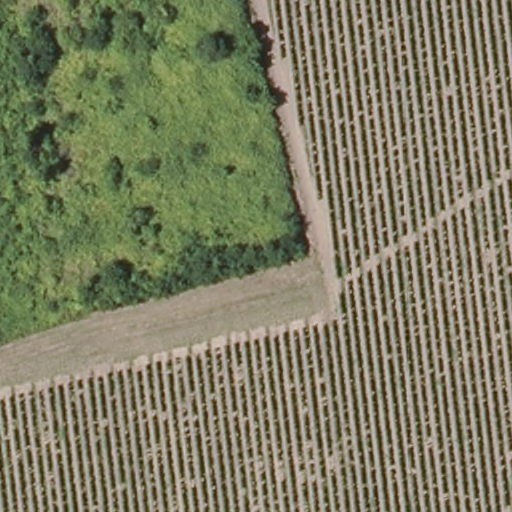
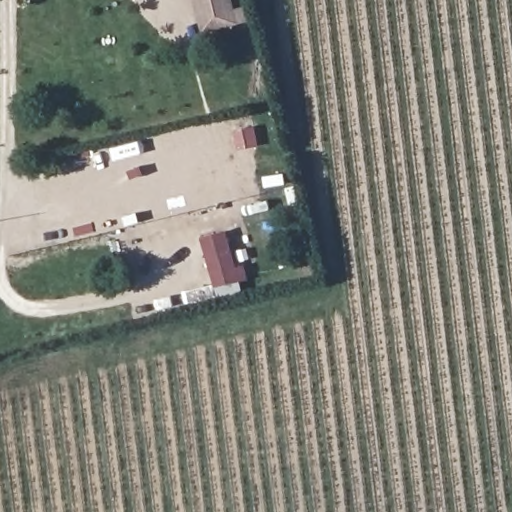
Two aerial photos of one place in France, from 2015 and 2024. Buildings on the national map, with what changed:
new [(227,5),(244,0),(250,22),(197,36),(187,0),(226,0),(227,5)]
new [(224,230),(233,268),(243,266),(246,280),(213,288),(199,237),(224,230)]

